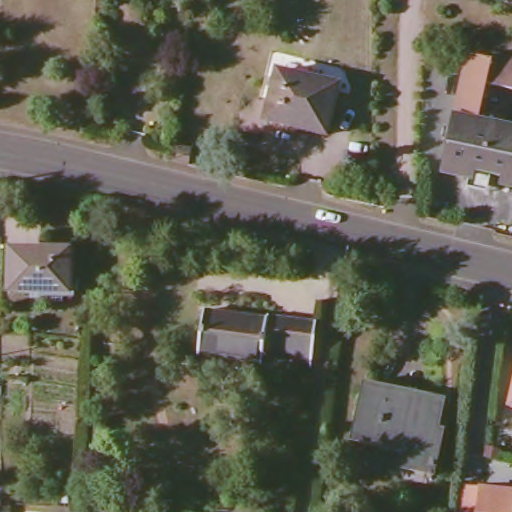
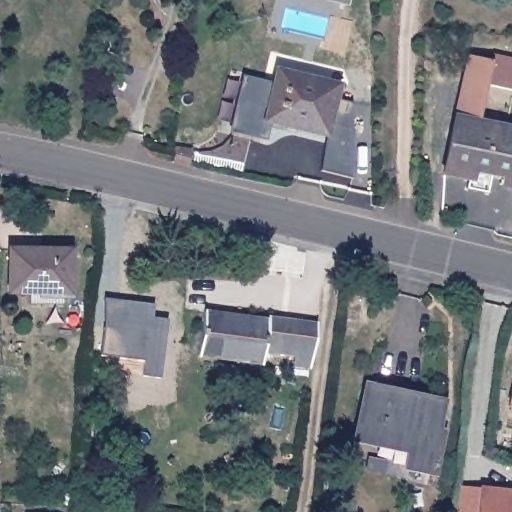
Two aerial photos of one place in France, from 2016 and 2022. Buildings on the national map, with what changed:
new [(326,0),(350,0),(349,6),(326,0)]
unchanged [(508,176),(470,167),(468,180),(442,175),(451,134),(469,62),(512,71),(512,92),(487,87),(479,125),(512,132),(512,189),(505,187),(508,176)]
unchanged [(265,118),(277,70),(337,84),(325,134),(265,118)]
unchanged [(172,165),(176,150),(190,154),(187,169),(172,165)]
unchanged [(5,285),(7,244),(40,245),(37,287),(5,285)]
unchanged [(68,247),(66,289),(37,287),(40,245),(68,247)]
new [(168,320),(160,380),(142,377),(144,362),(100,355),(104,327),(109,299),(128,302),(155,305),(153,318),(168,320)]
unchanged [(195,351),(201,308),(212,310),(250,315),(244,358),(207,353),(195,351)]
unchanged [(290,350),(260,345),(258,360),(244,358),(250,315),(264,317),(265,312),(312,320),(307,352),(306,363),(288,360),(290,350)]
unchanged [(439,435),(430,476),(404,470),(408,450),(349,437),(360,386),(440,405),(435,435),(439,435)]
unchanged [(457,483),(479,484),(512,488),(512,512),(454,512),(457,483)]

